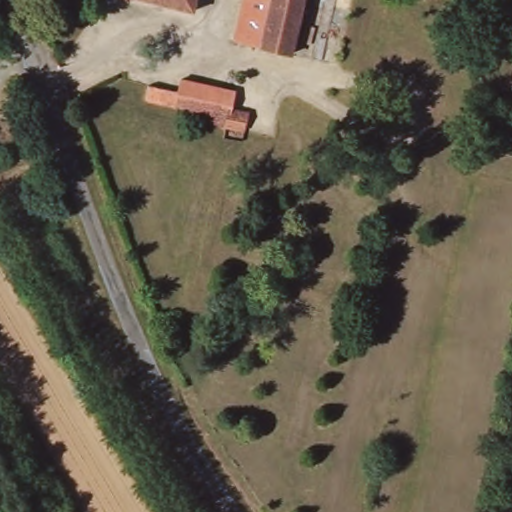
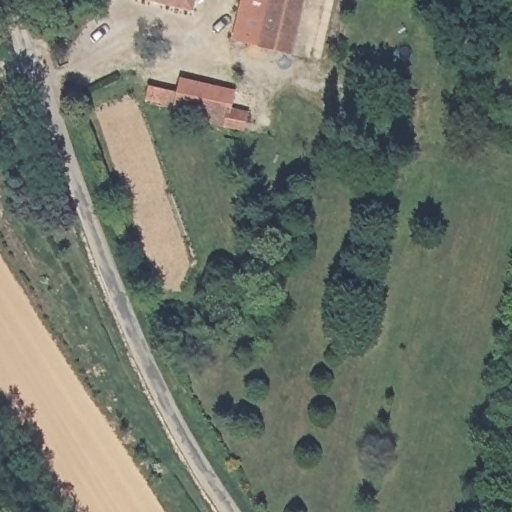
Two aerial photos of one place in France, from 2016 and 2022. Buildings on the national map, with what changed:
unchanged [(195,0),(192,11),(148,0),(195,0)]
unchanged [(304,0),(292,54),(233,41),(242,0),(304,0)]
unchanged [(242,92),(240,106),(254,109),(250,127),(249,127),(217,121),(212,120),(142,110),(144,96),(175,101),(178,82),(198,85),(228,90),(242,92)]

